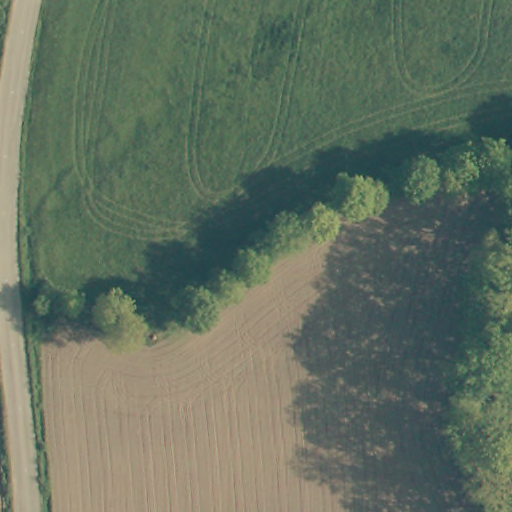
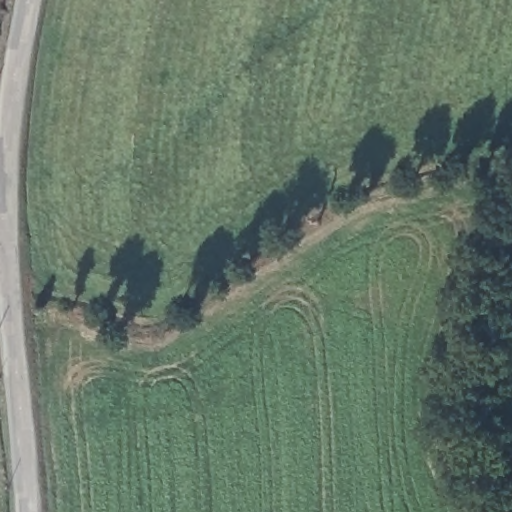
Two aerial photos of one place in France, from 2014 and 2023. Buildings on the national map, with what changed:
unchanged [(504,498),(512,495),(512,512),(510,512),(504,498)]

